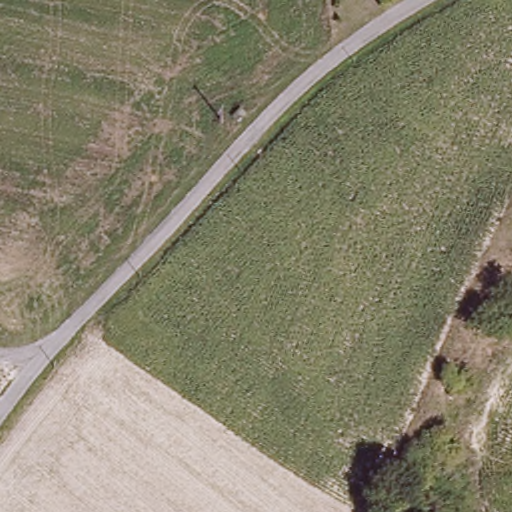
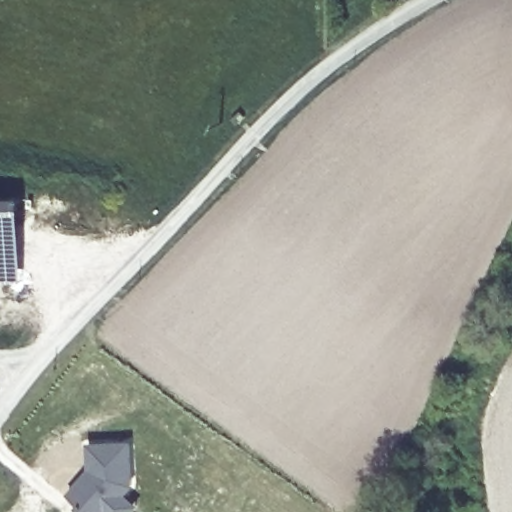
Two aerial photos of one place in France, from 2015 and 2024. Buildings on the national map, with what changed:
new [(25,195),(22,283),(0,283),(0,195),(25,195)]
new [(89,470),(87,444),(130,440),(134,486),(127,493),(140,505),(133,512),(78,512),(83,507),(67,494),(89,470)]

